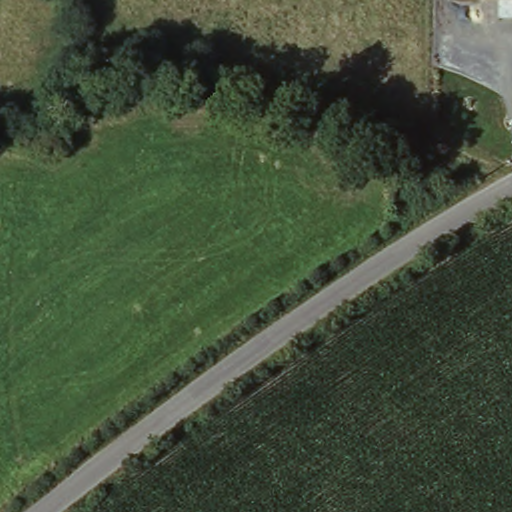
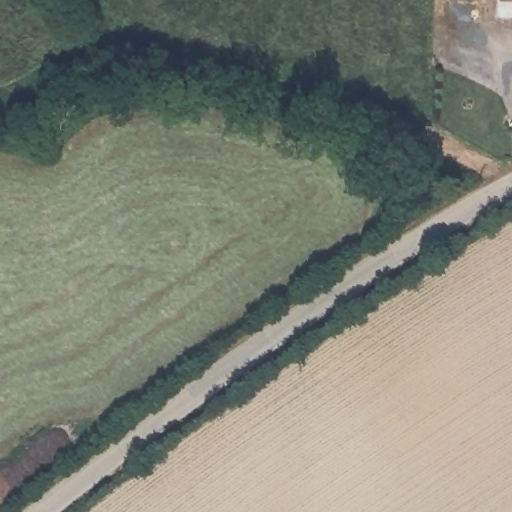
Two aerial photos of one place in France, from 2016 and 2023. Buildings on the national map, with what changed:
unchanged [(486,1),(486,0),(512,0),(486,1)]

